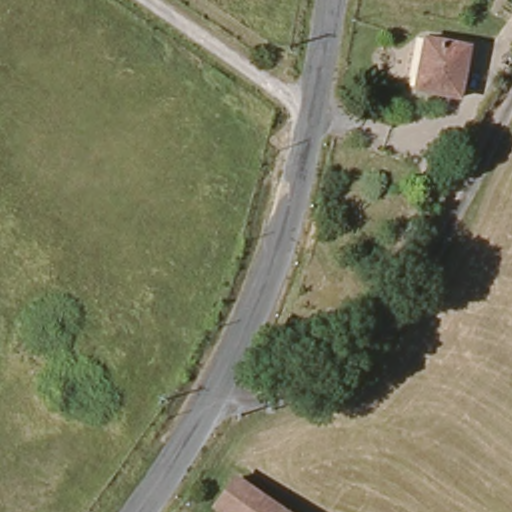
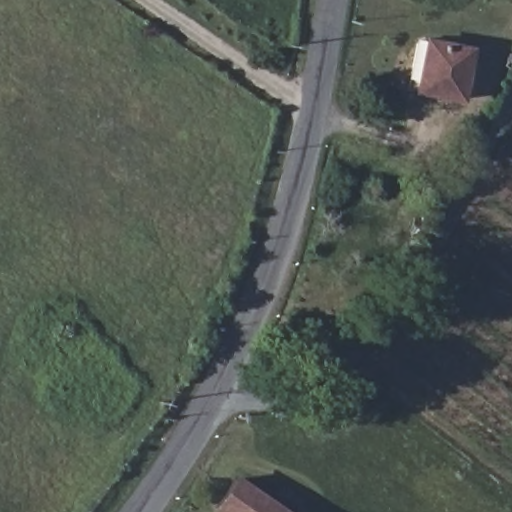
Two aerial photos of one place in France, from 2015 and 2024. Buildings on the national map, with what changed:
unchanged [(470,55),(461,106),(422,97),(422,86),(412,84),(420,45),(470,55)]
unchanged [(216,508),(239,478),(260,493),(288,512),(222,512),(216,508)]

